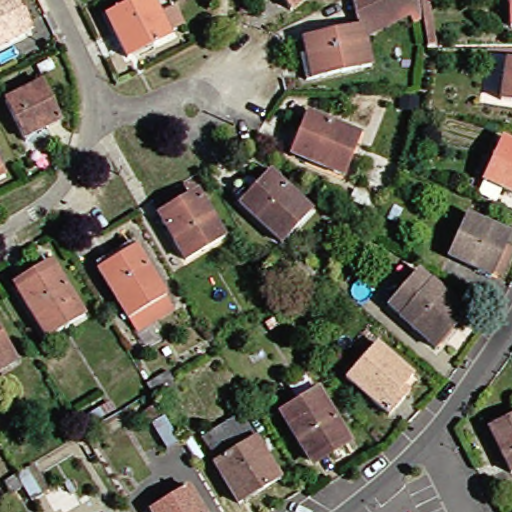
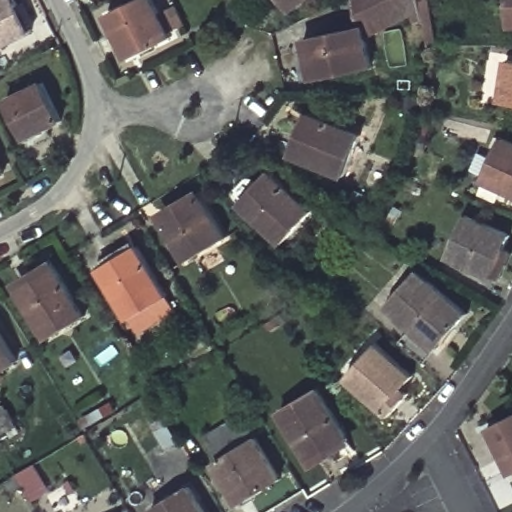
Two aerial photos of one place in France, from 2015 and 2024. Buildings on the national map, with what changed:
unchanged [(33,29),(0,47),(0,0),(18,0),(33,29)]
unchanged [(186,21),(171,28),(174,34),(130,55),(109,10),(129,0),(158,0),(163,11),(178,3),(186,21)]
unchanged [(295,8),(289,0),(305,0),(295,8)]
unchanged [(424,22),(416,27),(407,10),(373,27),(359,0),(422,0),(424,22)]
unchanged [(424,0),(432,0),(435,44),(428,44),(424,0)]
unchanged [(373,62),(318,77),(311,54),(308,55),(303,37),(362,22),(373,62)]
unchanged [(512,65),(512,103),(506,102),(512,65)]
unchanged [(65,115),(28,133),(10,96),(47,78),(65,115)]
unchanged [(348,173),(294,150),(311,111),(364,132),(348,173)]
unchanged [(506,136),(512,138),(512,188),(488,178),(506,136)]
unchanged [(4,166),(0,167),(0,158),(4,166)]
unchanged [(318,210),(290,242),(246,203),(240,198),(239,192),(252,176),(257,175),(266,181),(274,171),(318,210)]
unchanged [(228,231),(189,255),(166,215),(204,191),(228,231)]
unchanged [(452,257),(469,216),(512,233),(512,236),(496,276),(452,257)]
unchanged [(169,293),(131,316),(102,269),(140,246),(169,293)]
unchanged [(341,264),(330,277),(324,271),(337,258),(341,264)]
unchanged [(323,278),(312,289),(294,271),(305,260),(323,278)]
unchanged [(88,316),(51,337),(22,288),(58,267),(88,316)]
unchanged [(471,314),(440,350),(389,304),(421,268),(471,314)]
unchanged [(21,358),(0,370),(0,325),(21,358)]
unchanged [(415,372),(405,383),(411,388),(391,412),(349,373),(380,340),(415,372)]
unchanged [(211,425),(190,438),(164,395),(184,381),(211,425)]
unchanged [(351,442),(314,463),(284,414),(321,391),(351,442)]
unchanged [(16,418),(0,428),(0,408),(7,404),(16,418)]
unchanged [(165,417),(156,423),(150,413),(159,407),(165,417)]
unchanged [(512,414),(512,462),(493,424),(512,414)]
unchanged [(279,467),(237,492),(212,449),(254,424),(279,467)]
unchanged [(155,512),(155,511),(192,489),(205,512),(155,512)]

